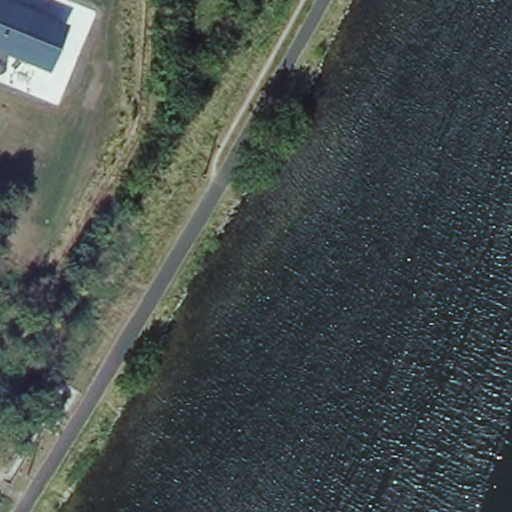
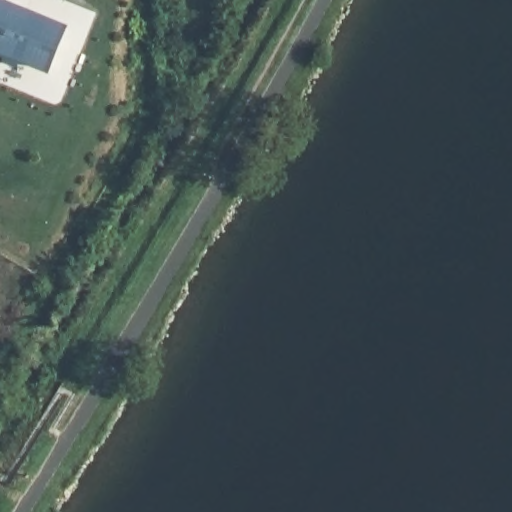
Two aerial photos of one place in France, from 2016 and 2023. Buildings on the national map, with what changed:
unchanged [(7,0),(67,24),(48,70),(0,50),(0,0),(7,0)]

